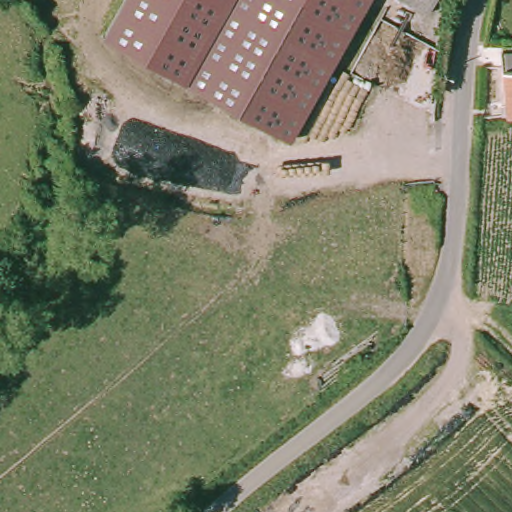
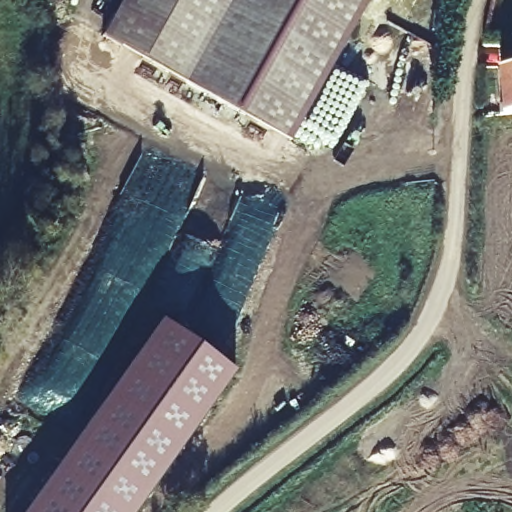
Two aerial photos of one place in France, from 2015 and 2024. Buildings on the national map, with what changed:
unchanged [(103,36),(122,0),(371,0),(291,140),(103,36)]
unchanged [(415,0),(433,0),(429,7),(415,0)]
unchanged [(499,52),(512,51),(512,114),(506,115),(499,52)]
new [(161,321),(235,373),(136,512),(26,512),(161,321)]

